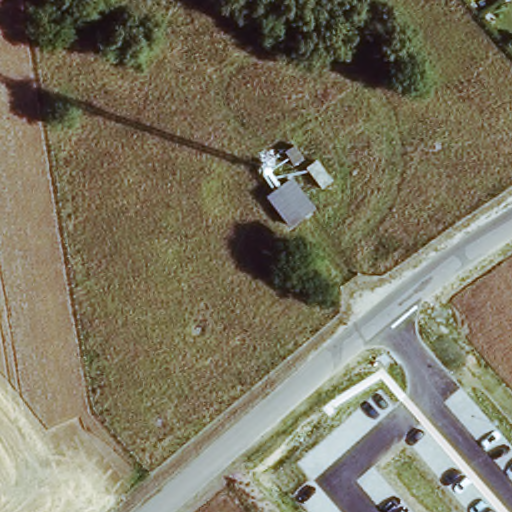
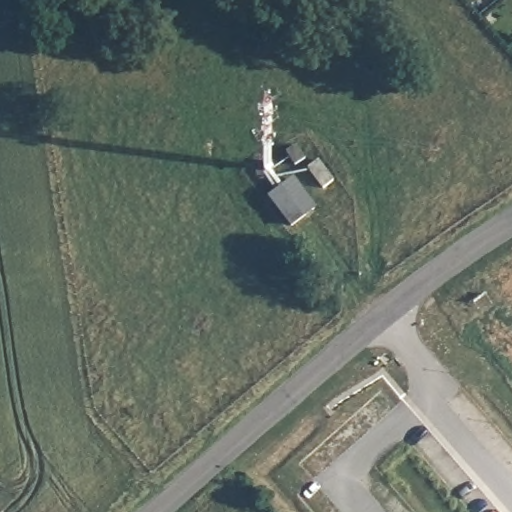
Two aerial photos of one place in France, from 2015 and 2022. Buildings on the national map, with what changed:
unchanged [(293,144),(303,157),(293,165),(283,152),(293,144)]
unchanged [(292,220),(270,193),(293,175),(314,203),(292,220)]

